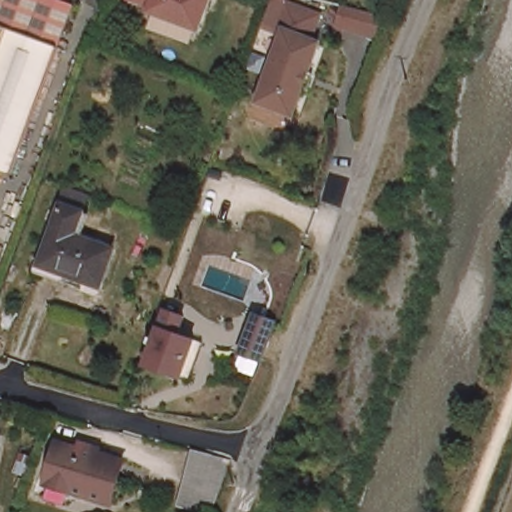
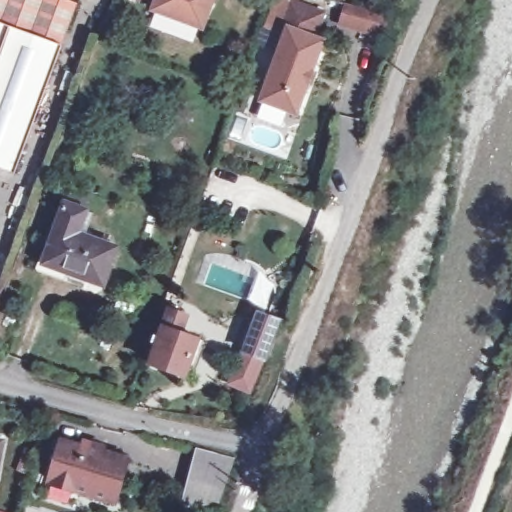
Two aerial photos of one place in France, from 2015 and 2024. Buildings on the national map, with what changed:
unchanged [(0,21),(0,0),(71,0),(76,2),(61,43),(0,21)]
unchanged [(205,32),(159,18),(160,11),(128,0),(218,0),(205,32)]
unchanged [(377,12),(368,34),(345,24),(352,6),(377,12)]
unchanged [(287,44),(281,42),(290,17),(325,30),(316,54),(326,57),(297,128),(261,115),(287,44)]
unchanged [(61,43),(51,71),(15,173),(0,167),(0,21),(61,43)]
unchanged [(62,204),(102,219),(94,242),(115,250),(102,286),(39,263),(62,204)]
unchanged [(184,316),(179,331),(204,341),(190,378),(148,363),(156,344),(149,342),(152,335),(158,337),(167,310),(184,316)]
unchanged [(266,360),(245,353),(260,314),(281,321),(266,360)]
unchanged [(11,448),(0,486),(0,444),(11,448)]
unchanged [(55,484),(66,446),(87,452),(88,449),(124,459),(113,499),(55,484)]
unchanged [(202,451),(235,462),(234,469),(218,512),(205,512),(187,507),(202,451)]

